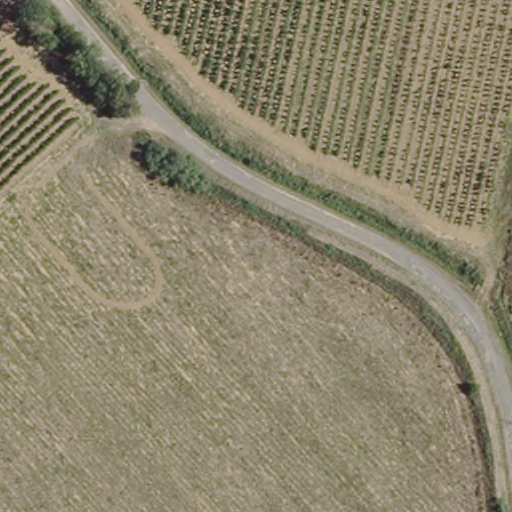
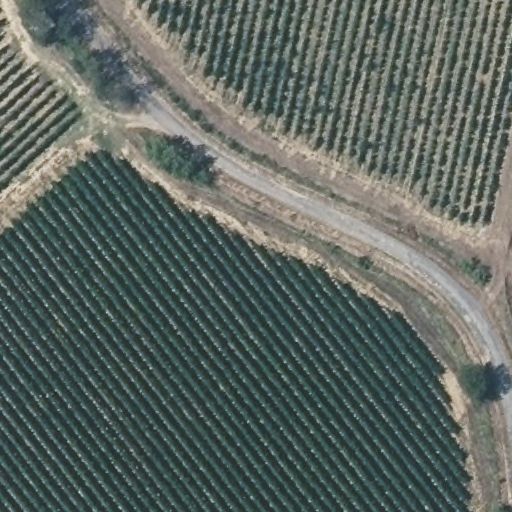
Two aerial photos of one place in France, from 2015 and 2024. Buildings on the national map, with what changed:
unchanged [(43,39),(28,22),(43,10),(57,27),(43,39)]

